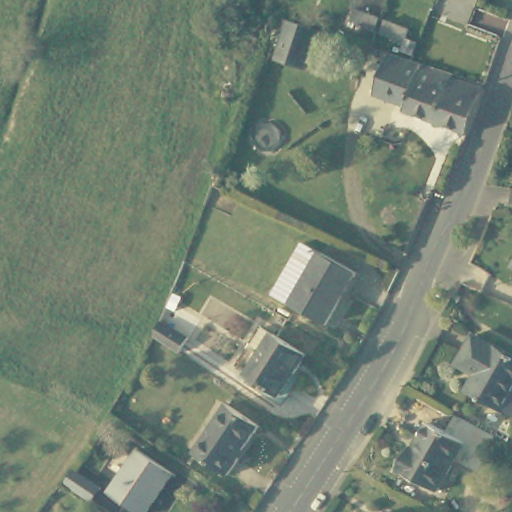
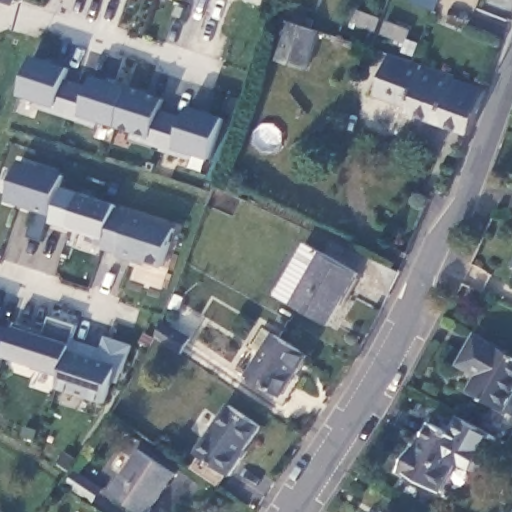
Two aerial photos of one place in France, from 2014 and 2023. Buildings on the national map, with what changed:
unchanged [(298,24),(308,26),(306,32),(319,36),(307,71),(278,62),(289,27),(296,29),(298,24)]
unchanged [(407,105),(394,100),(372,93),(385,55),(386,52),(408,60),(414,62),(454,76),(452,82),(436,126),(403,115),(407,105)]
new [(68,68),(63,81),(77,86),(66,117),(36,109),(41,103),(20,96),(33,55),(68,68)]
new [(77,86),(88,91),(92,76),(129,87),(117,124),(98,121),(94,127),(66,117),(77,86)]
unchanged [(436,126),(452,82),(482,92),(465,137),(436,126)]
new [(164,98),(161,110),(186,115),(190,106),(224,117),(210,160),(193,154),(188,160),(161,149),(162,147),(133,137),(135,131),(117,124),(129,87),(164,98)]
new [(49,215),(42,240),(28,237),(36,212),(5,202),(18,161),(61,175),(49,215)]
unchanged [(512,187),(512,203),(509,202),(512,187)]
new [(160,267),(117,255),(101,250),(104,240),(69,230),(80,194),(116,207),(173,226),(160,267)]
unchanged [(324,318),(294,302),(281,295),(310,244),(321,251),(354,270),(324,318)]
new [(1,317),(0,318),(0,316),(1,317)]
new [(12,333),(14,327),(46,337),(51,318),(78,328),(74,342),(113,353),(117,342),(138,348),(130,374),(121,372),(111,403),(64,388),(69,376),(5,355),(4,358),(0,357),(0,331),(12,333)]
unchanged [(277,330),(310,351),(286,388),(253,367),(277,330)]
unchanged [(512,399),(506,411),(469,391),(481,367),(462,356),(473,336),(492,346),(494,343),(512,353),(512,399)]
unchanged [(226,401),(258,421),(227,468),(196,448),(226,401)]
unchanged [(461,442),(435,492),(397,471),(408,448),(412,451),(427,425),(461,442)]
unchanged [(138,449),(171,473),(145,512),(137,512),(109,492),(138,449)]

